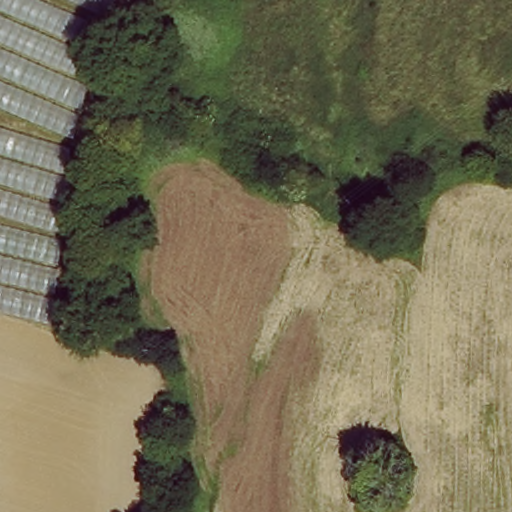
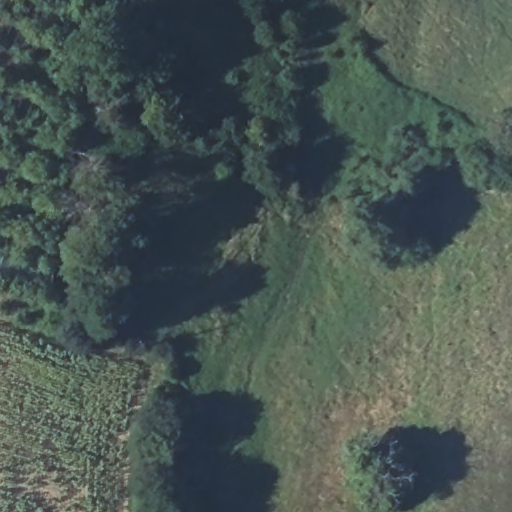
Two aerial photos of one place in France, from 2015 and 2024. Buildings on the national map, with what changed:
demolished [(113,14),(77,158),(58,333),(0,319),(0,0),(120,0),(113,14)]

